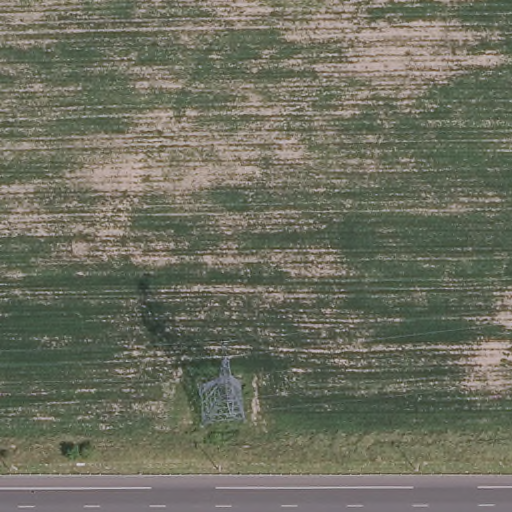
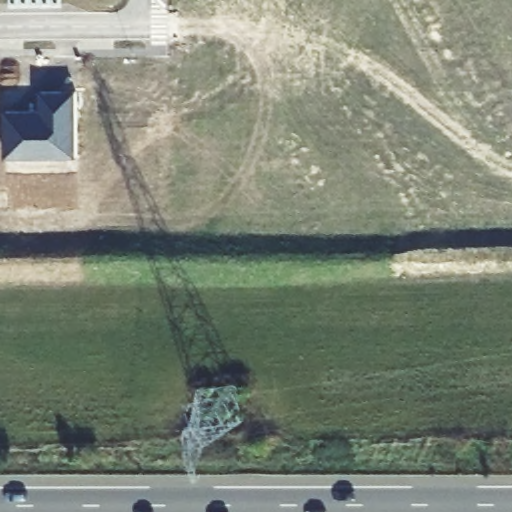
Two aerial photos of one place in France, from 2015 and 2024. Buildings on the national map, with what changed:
new [(76,159),(4,160),(4,111),(38,114),(39,93),(76,94),(76,159)]

